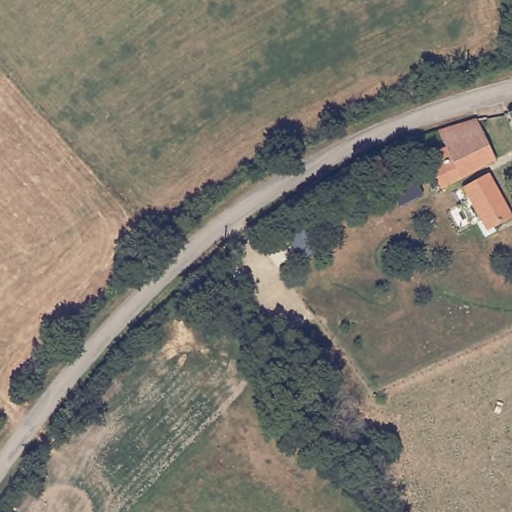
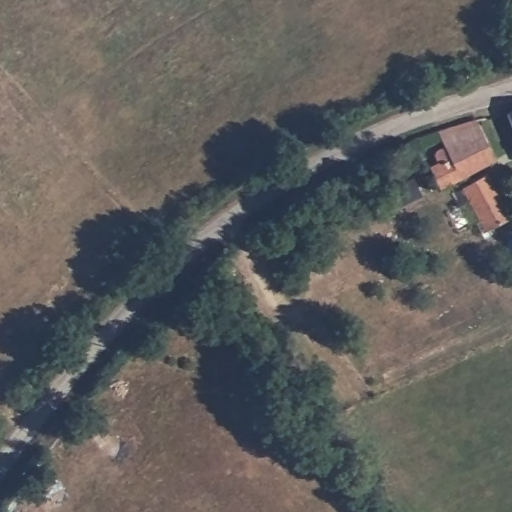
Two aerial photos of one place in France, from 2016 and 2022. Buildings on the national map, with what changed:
unchanged [(507,115),(512,113),(512,128),(507,115)]
unchanged [(473,121),(488,146),(490,144),(496,159),(457,180),(443,187),(431,166),(438,161),(436,154),(446,147),(439,135),(473,121)]
unchanged [(462,189),(490,174),(511,217),(483,231),(462,189)]

